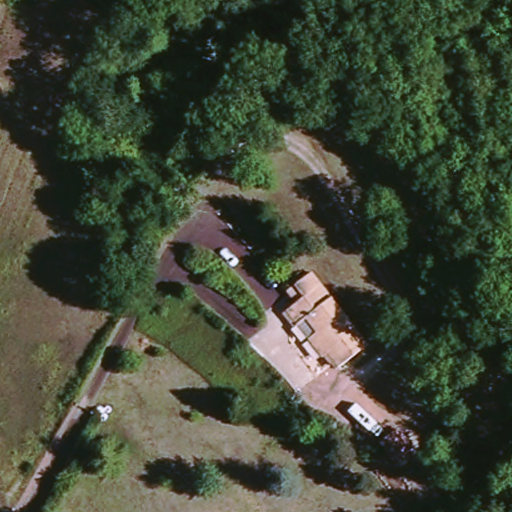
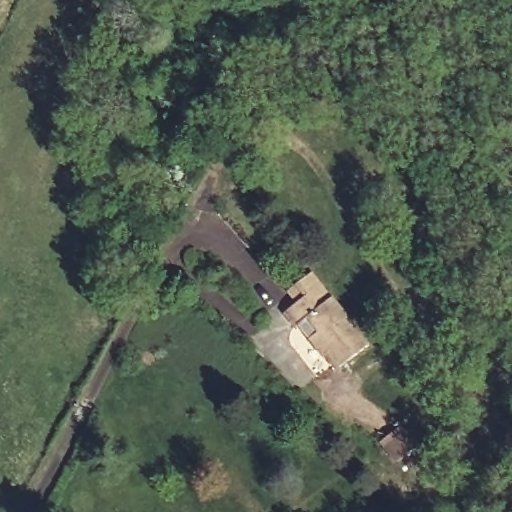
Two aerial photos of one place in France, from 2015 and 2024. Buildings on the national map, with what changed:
unchanged [(290,311),(326,285),(371,347),(343,368),(330,351),(322,356),(298,324),(290,311)]
unchanged [(410,453),(394,463),(381,442),(400,432),(410,453)]

